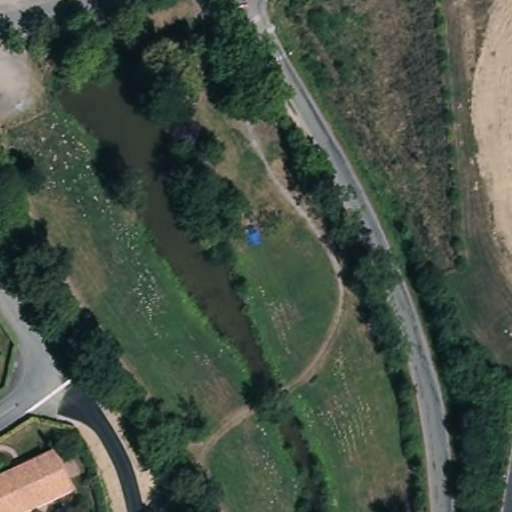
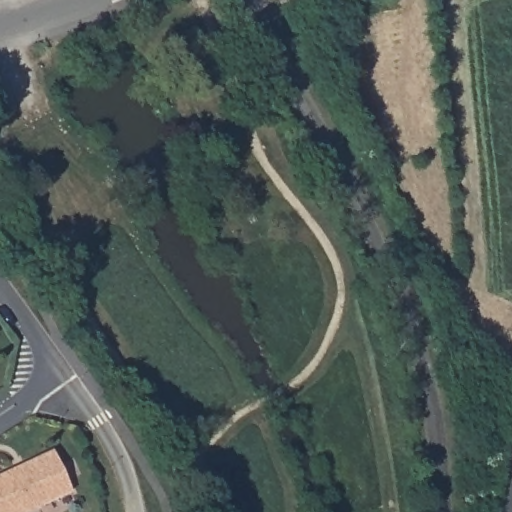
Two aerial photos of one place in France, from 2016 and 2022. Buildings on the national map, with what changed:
unchanged [(77,495),(40,512),(0,512),(0,481),(59,453),(77,495)]

